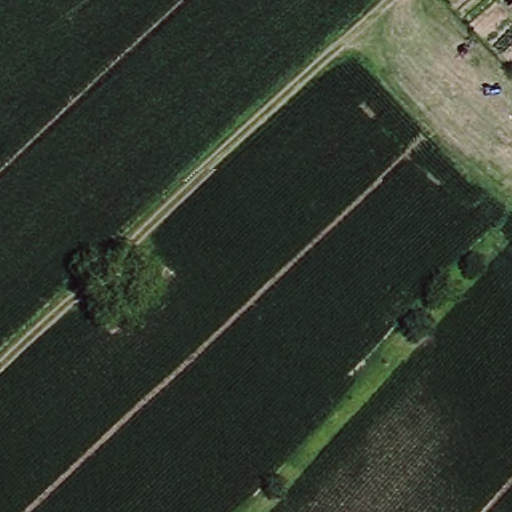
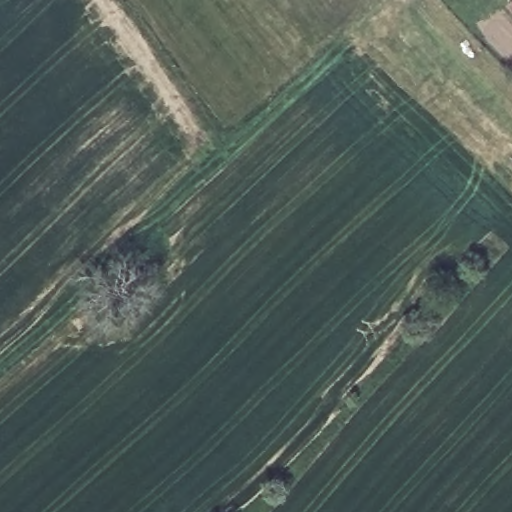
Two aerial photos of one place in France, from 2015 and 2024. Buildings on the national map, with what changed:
[]

